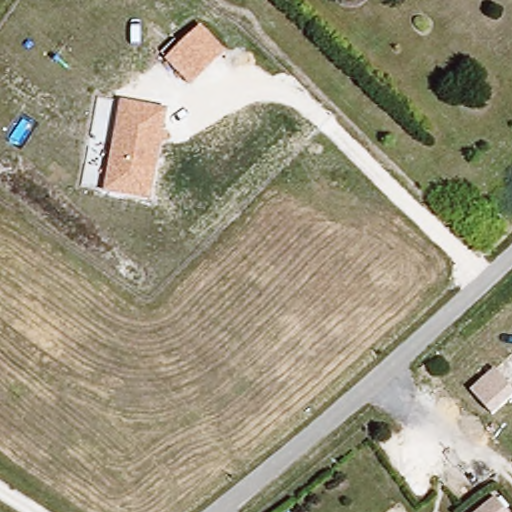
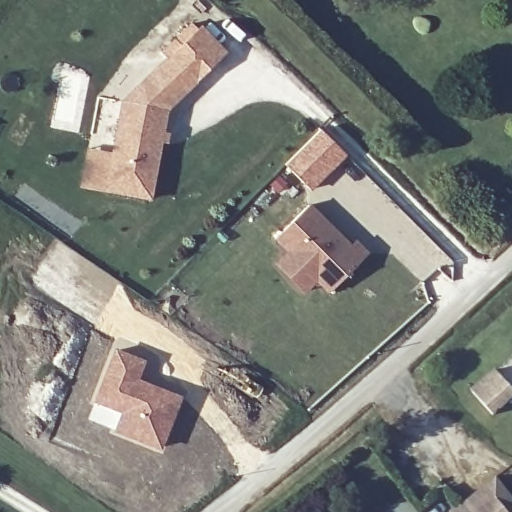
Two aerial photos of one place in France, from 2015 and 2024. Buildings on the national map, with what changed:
unchanged [(227,52),(193,88),(166,60),(201,26),(227,52)]
new [(193,88),(169,108),(121,99),(166,60),(193,88)]
unchanged [(151,200),(104,192),(121,99),(169,108),(151,200)]
new [(287,165),(320,131),(345,156),(311,190),(287,165)]
new [(274,237),(307,204),(349,247),(354,242),(366,254),(325,293),(314,280),(303,291),(275,262),(287,251),(274,237)]
new [(90,404),(114,346),(146,359),(139,377),(183,395),(160,451),(110,431),(111,428),(88,418),(93,405),(90,404)]
unchanged [(495,368),(512,386),(512,398),(494,415),(471,390),(495,368)]
unchanged [(496,496),(509,512),(476,512),(496,496)]

